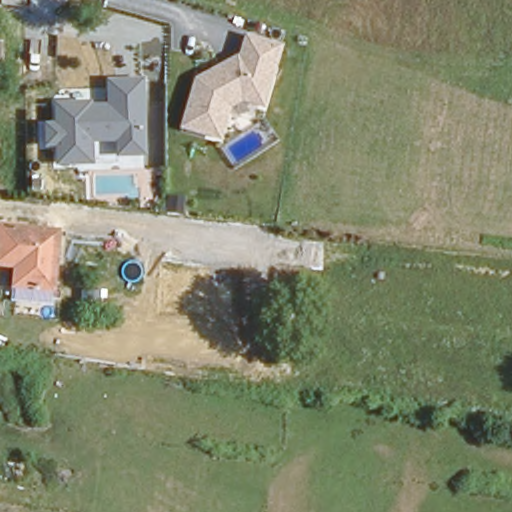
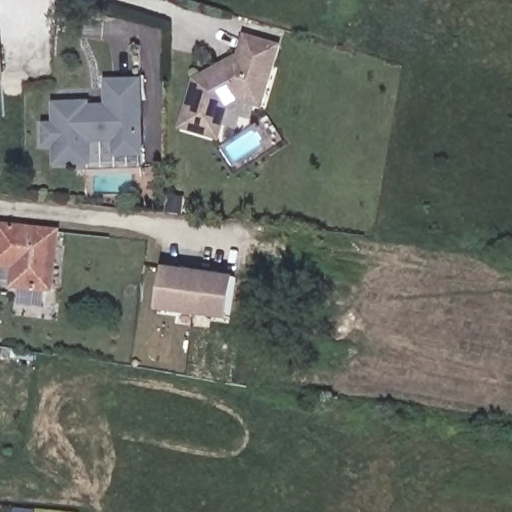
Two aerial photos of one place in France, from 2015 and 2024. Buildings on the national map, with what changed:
unchanged [(266,109),(243,103),(232,108),(222,141),(181,128),(196,81),(239,56),(245,35),(284,45),(266,109)]
unchanged [(4,39),(4,74),(0,74),(0,39),(4,39)]
unchanged [(148,159),(116,160),(116,143),(94,144),(95,165),(56,166),(56,146),(45,146),(44,124),(54,124),(54,101),(94,100),(94,104),(107,104),(107,79),(144,78),(148,159)]
unchanged [(57,284),(16,279),(18,254),(0,253),(0,236),(3,212),(65,221),(57,284)]
new [(160,311),(165,267),(237,277),(231,321),(160,311)]

